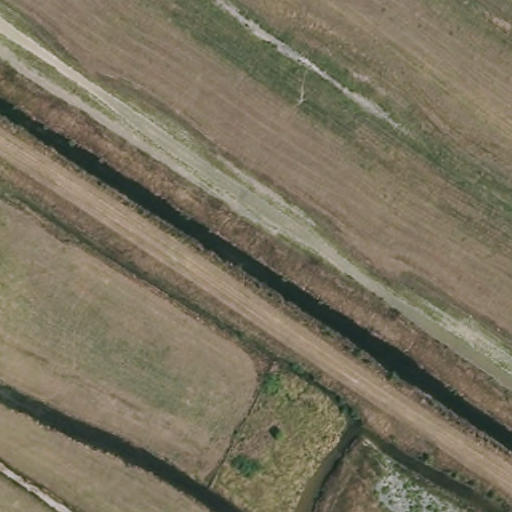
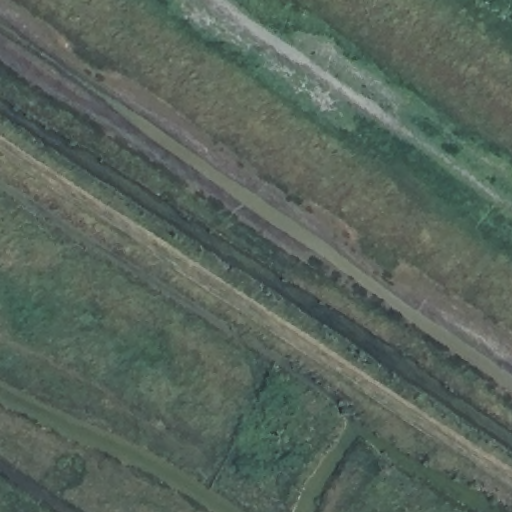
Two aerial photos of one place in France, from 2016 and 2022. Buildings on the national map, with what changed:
[]

